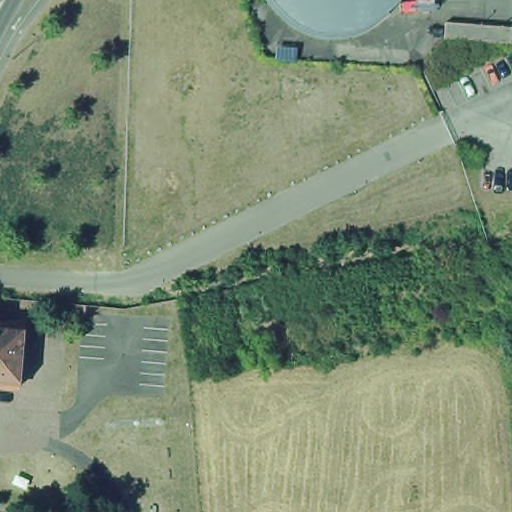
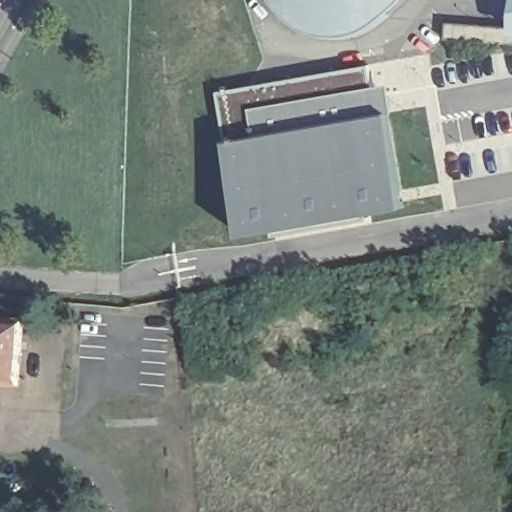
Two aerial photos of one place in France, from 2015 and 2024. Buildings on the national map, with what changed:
unchanged [(368,29),(339,40),(324,41),(307,37),(281,22),(264,1),(263,0),(404,0),(393,12),(368,29)]
unchanged [(436,44),(439,23),(505,25),(506,0),(512,0),(512,48),(436,44)]
new [(227,140),(215,91),(370,64),(372,86),(392,83),(417,205),(252,235),(227,140)]
unchanged [(12,393),(0,392),(0,328),(17,330),(12,393)]

